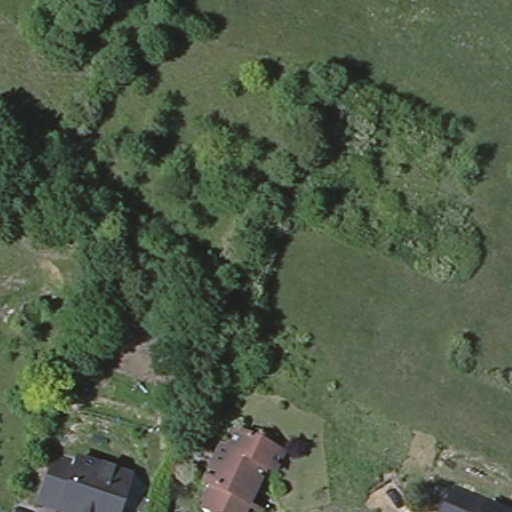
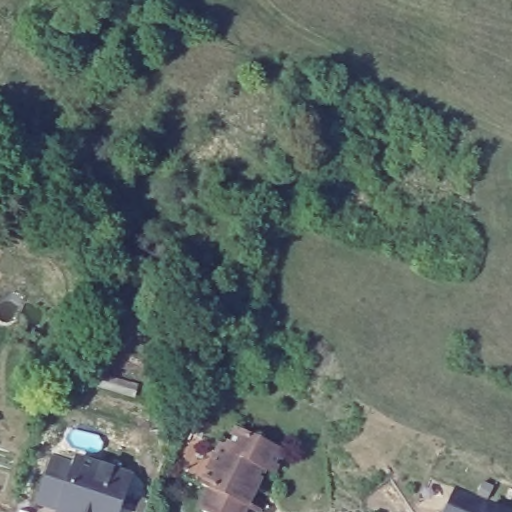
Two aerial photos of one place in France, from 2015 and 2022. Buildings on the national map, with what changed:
unchanged [(221,445),(226,447),(236,429),(283,451),(274,470),(264,465),(250,495),(206,476),(221,445)]
unchanged [(78,458),(130,476),(117,512),(58,512),(59,509),(35,500),(51,456),(75,464),(78,458)]
unchanged [(204,512),(201,510),(212,487),(203,483),(206,476),(250,495),(246,503),(256,507),(260,509),(259,512),(204,512)]
unchanged [(454,491),(488,506),(503,512),(445,512),(452,495),(454,491)]

